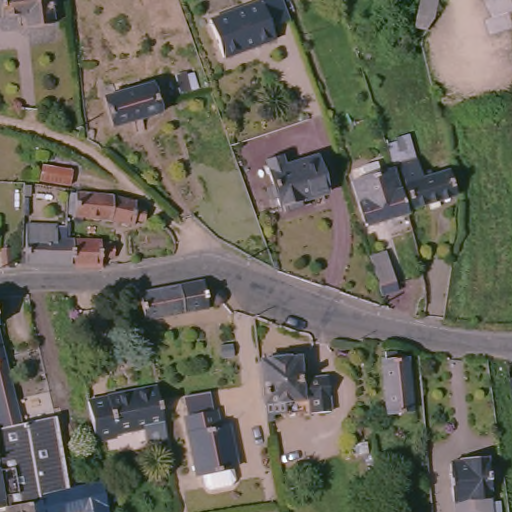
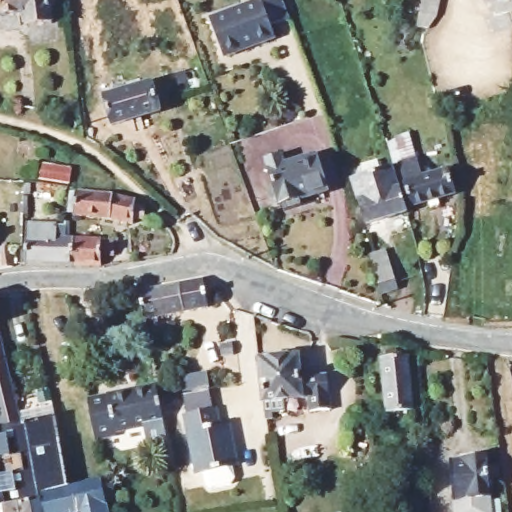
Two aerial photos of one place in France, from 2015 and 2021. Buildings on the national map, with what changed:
unchanged [(49,7),(52,25),(28,27),(26,16),(4,19),(0,19),(0,0),(56,0),(57,7),(49,7)]
unchanged [(217,17),(265,0),(286,0),(298,32),(230,55),(217,17)]
unchanged [(439,19),(431,29),(421,27),(427,0),(444,0),(443,6),(439,19)]
unchanged [(159,112),(112,127),(103,97),(151,84),(159,112)]
unchanged [(278,156),(281,166),(314,157),(326,192),(298,201),(300,207),(283,212),(281,208),(278,208),(263,161),(278,156)]
unchanged [(416,207),(401,166),(418,160),(423,174),(433,171),(434,175),(451,171),(458,194),(416,207)]
unchanged [(409,206),(411,212),(369,225),(356,180),(366,176),(364,166),(379,161),(383,170),(396,167),(409,206)]
unchanged [(73,186),(43,181),(45,165),(76,169),(73,186)]
unchanged [(28,195),(14,195),(14,183),(28,185),(28,195)]
unchanged [(139,201),(139,206),(148,209),(150,211),(148,222),(137,221),(137,227),(118,222),(78,218),(79,191),(116,196),(139,201)]
unchanged [(33,197),(31,216),(27,216),(28,197),(33,197)]
unchanged [(25,252),(30,252),(31,225),(69,227),(70,237),(99,240),(105,240),(105,243),(118,244),(118,258),(104,258),(104,268),(36,265),(29,266),(24,266),(25,252)]
unchanged [(18,268),(5,270),(3,250),(16,249),(18,266),(18,268)]
unchanged [(368,273),(376,271),(373,260),(388,255),(401,295),(384,300),(379,282),(371,285),(368,273)]
unchanged [(205,279),(211,308),(148,320),(143,290),(205,279)]
unchanged [(220,306),(216,303),(214,299),(214,296),(218,292),(221,290),(224,291),(228,293),(230,300),(228,303),(224,306),(220,306)]
unchanged [(25,423),(3,428),(0,418),(0,323),(8,357),(25,423)]
unchanged [(415,410),(391,412),(385,362),(388,360),(387,351),(399,351),(400,354),(405,354),(406,359),(410,358),(415,410)]
unchanged [(333,412),(313,414),(311,397),(308,398),(283,400),(284,413),(276,415),(276,421),(268,422),(261,359),(300,357),(302,377),(306,377),(330,375),(333,412)]
unchanged [(146,427),(118,433),(118,437),(98,441),(91,407),(112,402),(111,396),(160,387),(163,399),(167,423),(169,440),(149,443),(146,427)]
unchanged [(235,462),(229,463),(232,477),(228,483),(208,487),(201,483),(200,470),(195,470),(183,411),(213,405),(217,421),(226,420),(235,462)]
unchanged [(42,495),(43,502),(26,505),(8,508),(0,510),(0,429),(3,428),(25,423),(58,416),(71,488),(46,494),(42,495)]
unchanged [(498,480),(488,482),(490,512),(453,512),(449,463),(459,462),(460,458),(486,457),(487,467),(496,467),(498,480)]
unchanged [(66,511),(61,512),(43,512),(8,512),(8,508),(26,505),(43,502),(42,495),(46,494),(71,488),(103,480),(108,500),(111,512),(67,512),(66,511)]

